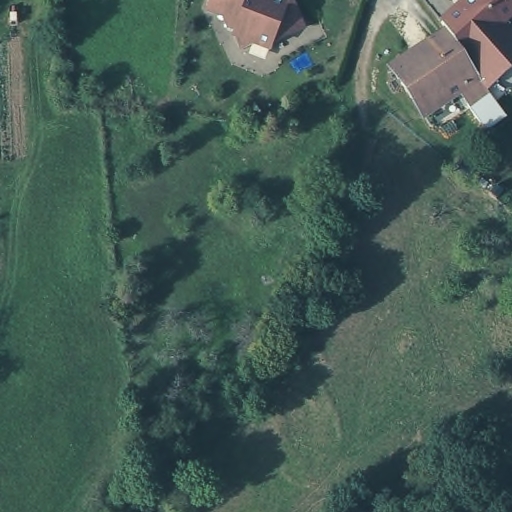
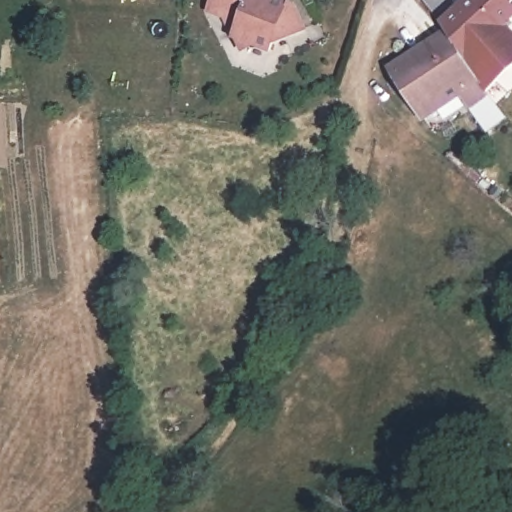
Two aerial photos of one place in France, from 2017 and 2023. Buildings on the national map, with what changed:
unchanged [(288,0),(300,23),(270,38),(270,46),(250,39),(240,45),(236,35),(232,34),(236,25),(230,24),(225,13),(208,7),(211,0),(288,0)]
unchanged [(498,31),(512,44),(512,74),(485,102),(484,100),(443,30),(440,26),(467,0),(512,0),(512,12),(498,31)]
unchanged [(484,100),(485,102),(483,104),(463,116),(455,103),(420,122),(390,74),(443,30),(484,100)]

